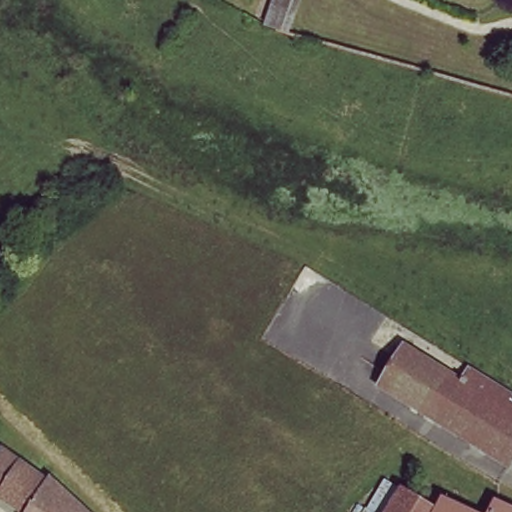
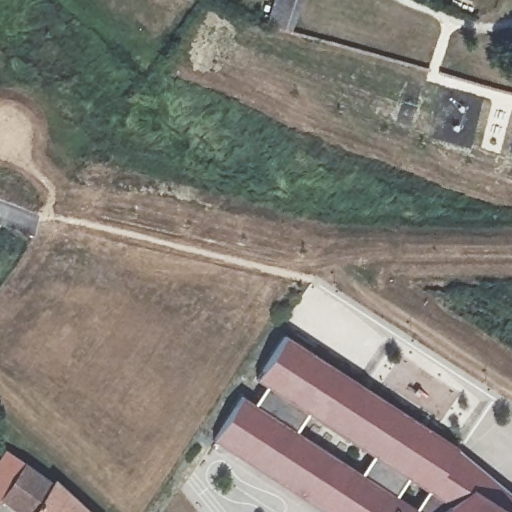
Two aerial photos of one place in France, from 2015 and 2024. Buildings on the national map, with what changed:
unchanged [(277,0),(302,0),(291,31),(270,24),(268,23),(277,0)]
new [(254,378),(284,335),(456,447),(427,489),(449,505),(471,488),(506,512),(419,512),(414,508),(425,492),(406,478),(394,497),(389,492),(381,506),(391,512),(322,512),(211,441),(241,396),(254,405),(266,386),(254,378)]
demolished [(404,408),(378,392),(403,354),(429,370),(404,408)]
demolished [(461,390),(469,377),(499,396),(509,402),(512,404),(512,466),(507,475),(487,462),(404,408),(429,370),(461,390)]
new [(512,495),(512,512),(506,512),(471,488),(449,505),(427,489),(456,447),(508,492),(512,495)]
unchanged [(0,500),(0,462),(5,453),(65,496),(67,493),(93,512),(22,512),(4,500),(3,502),(0,500)]
demolished [(406,499),(414,486),(447,508),(456,512),(389,512),(399,495),(406,499)]
demolished [(512,512),(492,512),(495,505),(512,512)]

